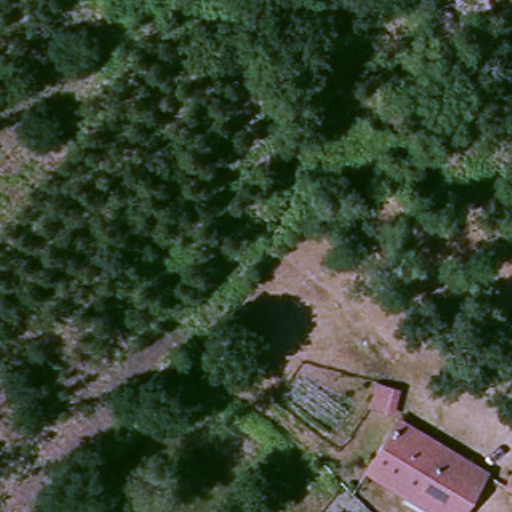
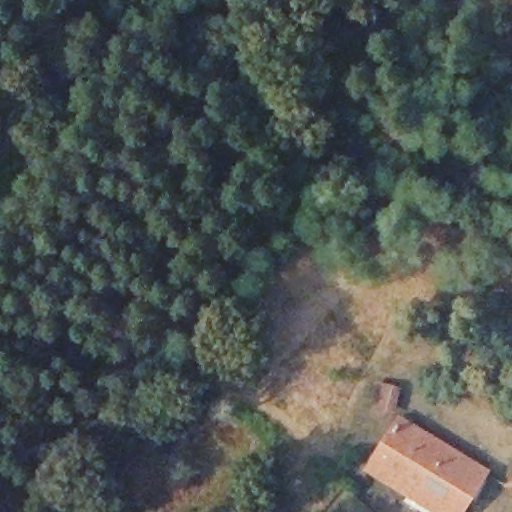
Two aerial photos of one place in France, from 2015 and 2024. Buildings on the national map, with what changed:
unchanged [(416,432),(491,473),(469,512),(436,512),(386,481),(412,438),(416,432)]
unchanged [(512,442),(512,484),(491,473),(510,440),(512,442)]

